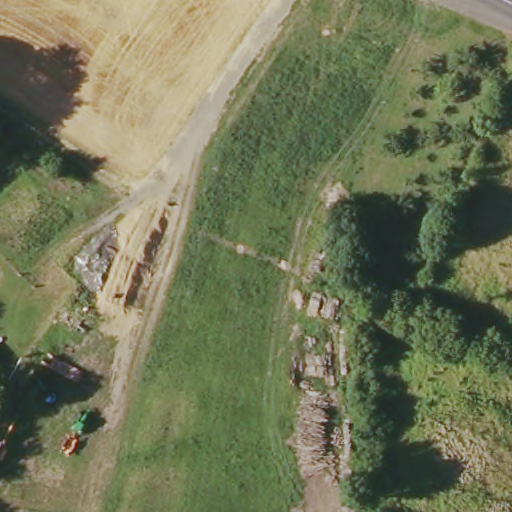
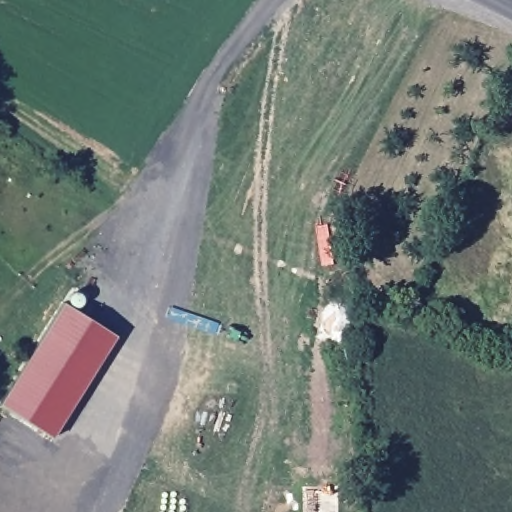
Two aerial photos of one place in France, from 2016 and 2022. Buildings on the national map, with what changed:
new [(0,404),(62,304),(69,295),(72,293),(77,294),(81,295),(82,298),(82,302),(76,312),(115,336),(52,439),(0,407),(0,404)]

